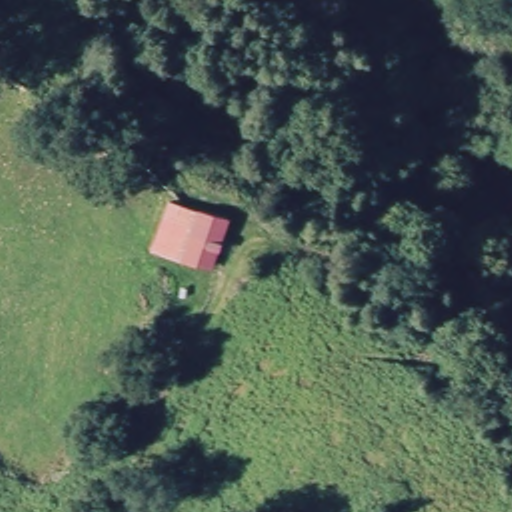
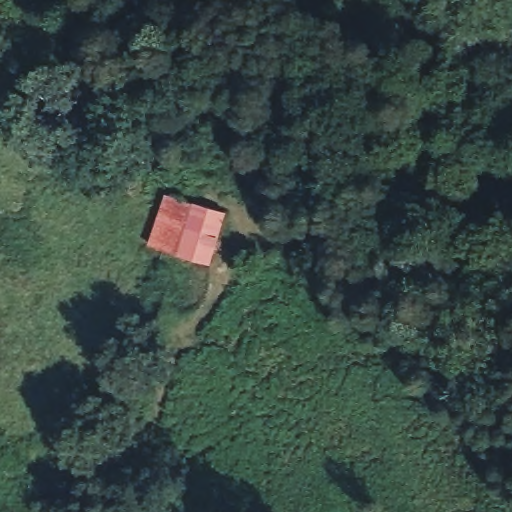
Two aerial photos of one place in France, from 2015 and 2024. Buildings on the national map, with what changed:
unchanged [(229,208),(215,263),(150,249),(163,192),(229,208)]

